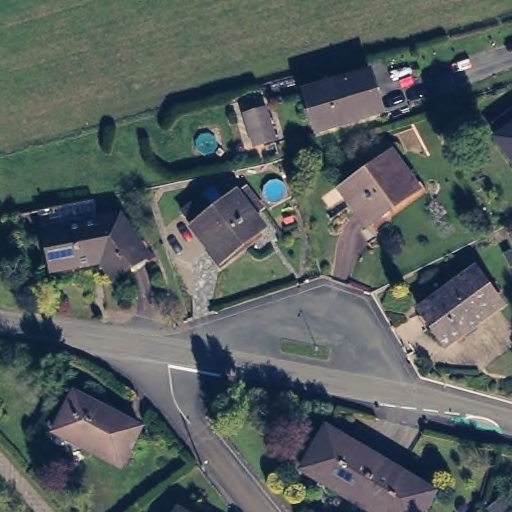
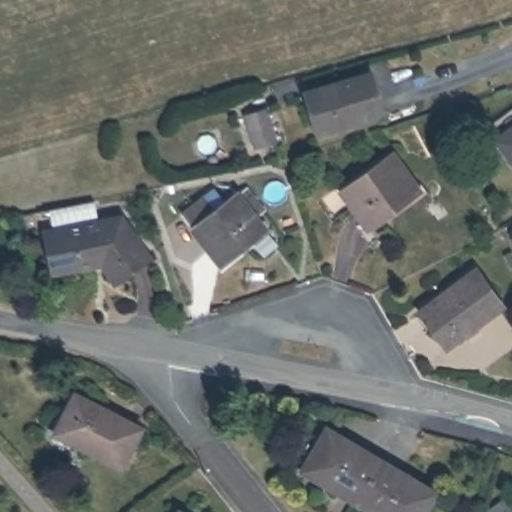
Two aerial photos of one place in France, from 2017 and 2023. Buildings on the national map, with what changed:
unchanged [(382,118),(315,138),(304,98),(370,78),(382,118)]
unchanged [(272,142),(255,147),(246,118),(264,113),(272,142)]
unchanged [(500,139),(512,130),(512,156),(500,139)]
unchanged [(421,190),(372,227),(346,191),(396,156),(421,190)]
unchanged [(246,193),(263,214),(252,223),(262,235),(221,267),(195,233),(182,218),(204,202),(215,217),(235,202),(246,193)]
unchanged [(147,253),(115,277),(102,258),(57,265),(52,227),(119,213),(147,253)]
unchanged [(500,301),(444,342),(419,308),(475,266),(500,301)]
unchanged [(55,430),(75,390),(141,425),(121,463),(55,430)]
unchanged [(360,499),(338,486),(340,483),(309,464),(331,426),(385,457),(360,499)]
unchanged [(425,512),(378,512),(380,510),(360,499),(385,457),(439,490),(425,512)]
unchanged [(505,498),(512,509),(512,510),(509,512),(489,512),(488,511),(505,498)]
unchanged [(193,512),(181,512),(184,507),(193,512)]

